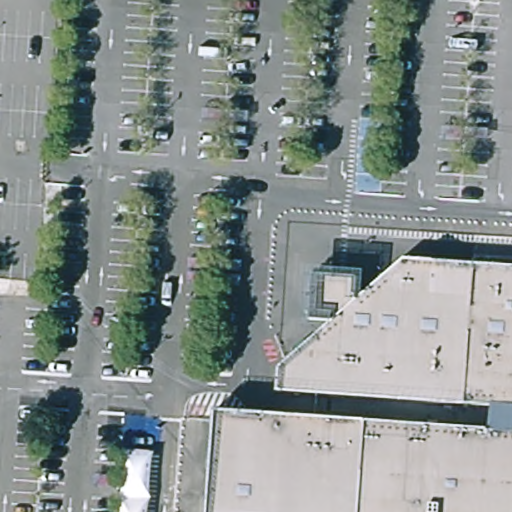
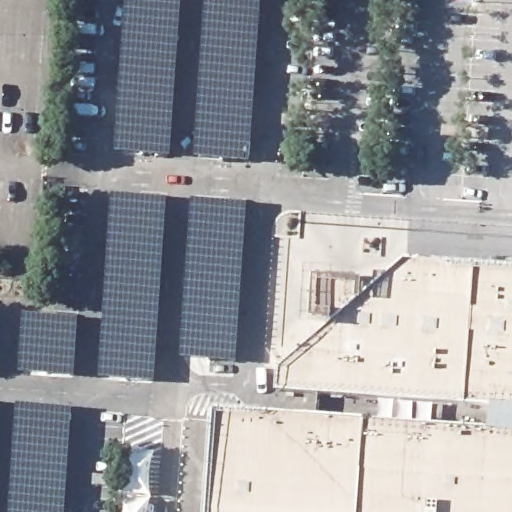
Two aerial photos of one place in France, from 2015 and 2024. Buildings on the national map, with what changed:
new [(115,150),(130,0),(183,0),(171,156),(115,150)]
new [(261,0),(248,163),(196,158),(211,0),(261,0)]
new [(120,194),(174,201),(151,383),(97,376),(120,194)]
new [(200,200),(253,207),(233,363),(180,357),(200,200)]
unchanged [(270,395),(271,372),(330,323),(346,310),(355,303),(404,262),(476,267),(467,407),(270,395)]
unchanged [(491,430),(493,408),(467,407),(476,267),(512,269),(512,512),(360,512),(366,422),(491,430)]
unchanged [(346,310),(330,323),(308,322),(311,277),(356,280),(355,303),(346,310)]
new [(28,314),(79,320),(73,378),(20,372),(28,314)]
new [(64,512),(13,512),(20,404),(69,409),(64,512)]
unchanged [(366,422),(360,512),(199,512),(206,412),(366,422)]

